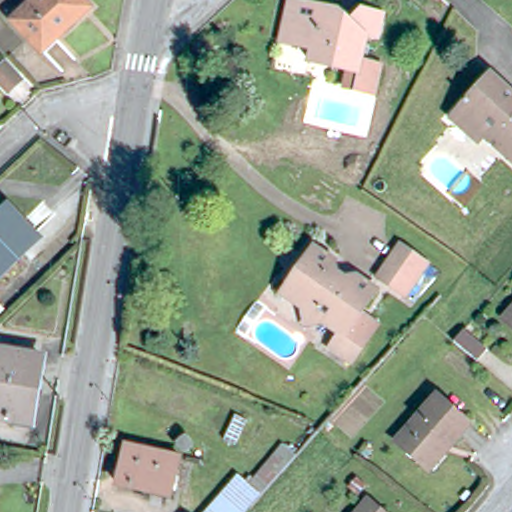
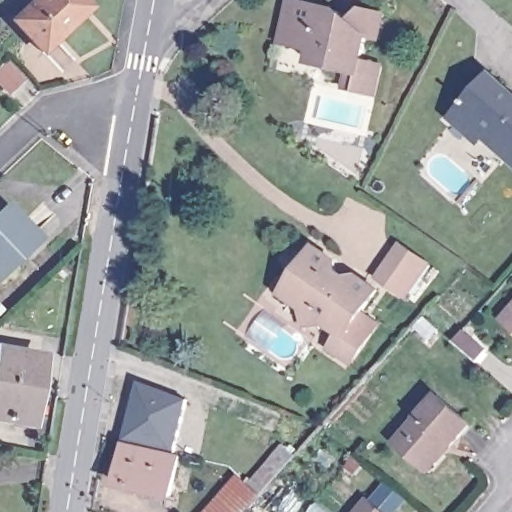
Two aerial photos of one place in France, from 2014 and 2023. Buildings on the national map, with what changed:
unchanged [(42,49),(14,18),(32,0),(85,0),(89,4),(42,49)]
unchanged [(342,85),(347,68),(307,59),(310,46),(279,39),(288,0),(303,0),(337,9),(349,20),(360,8),(380,13),(375,35),(365,33),(359,58),(379,63),(371,92),(342,85)]
unchanged [(21,86),(7,99),(0,91),(0,70),(3,68),(21,86)]
unchanged [(490,68),(512,88),(512,155),(473,120),(467,126),(450,111),(490,68)]
unchanged [(10,252),(14,256),(0,269),(0,209),(8,201),(33,229),(10,252)]
unchanged [(409,294),(404,290),(379,273),(403,239),(427,255),(431,258),(409,294)]
unchanged [(320,323),(318,322),(320,319),(320,316),(320,313),(310,307),(301,310),(279,295),(312,247),(334,262),(335,273),(345,280),(355,277),(374,290),(358,315),(357,316),(342,338),(340,337),(335,333),(320,323)]
unchanged [(512,311),(512,328),(504,321),(512,311)]
unchanged [(340,337),(342,338),(357,316),(358,315),(375,326),(347,367),(324,351),(335,333),(340,337)]
unchanged [(35,418),(0,412),(0,347),(0,345),(45,353),(35,418)]
new [(187,398),(175,449),(126,438),(139,381),(187,398)]
unchanged [(425,461),(399,439),(442,391),(473,419),(455,441),(432,467),(425,461)]
unchanged [(122,443),(177,456),(167,496),(112,482),(122,443)]
unchanged [(237,473),(261,491),(248,506),(242,512),(201,512),(237,473)]
unchanged [(360,477),(370,486),(362,496),(352,486),(360,477)]
unchanged [(366,497),(383,512),(353,512),(366,497)]

